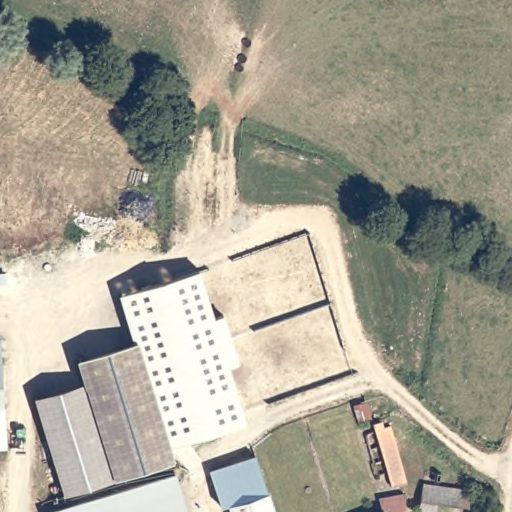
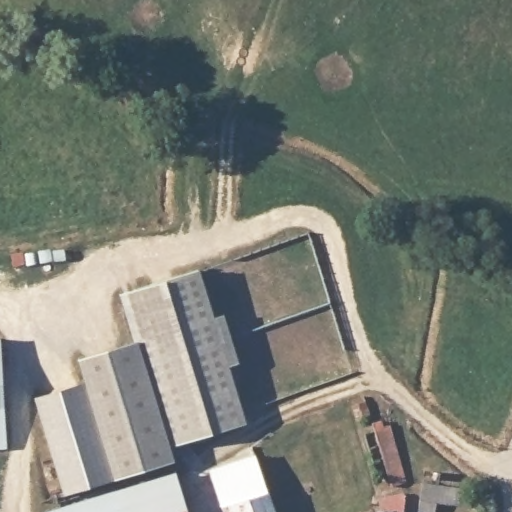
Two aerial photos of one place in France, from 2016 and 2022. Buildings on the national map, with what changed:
unchanged [(137,337),(134,338),(120,294),(201,268),(215,316),(225,314),(240,363),(229,367),(247,423),(171,446),(137,337)]
unchanged [(77,355),(137,337),(175,459),(127,473),(100,383),(87,387),(77,355)]
unchanged [(2,342),(5,417),(0,417),(0,343),(2,342)]
unchanged [(69,506),(33,405),(87,387),(100,383),(127,473),(133,490),(177,476),(190,512),(51,512),(69,506)]
unchanged [(376,419),(391,415),(407,472),(393,476),(378,424),(376,419)]
unchanged [(5,417),(7,449),(0,450),(0,417),(5,417)]
unchanged [(211,472),(226,467),(259,457),(258,458),(263,477),(267,490),(231,502),(233,508),(223,511),(222,508),(211,472)]
unchanged [(425,490),(426,487),(426,474),(475,477),(475,493),(452,493),(444,492),(442,502),(425,502),(425,490)]
unchanged [(384,509),(381,495),(405,489),(407,493),(404,512),(377,512),(384,509)]
unchanged [(233,508),(231,502),(267,490),(274,512),(234,512),(233,508)]

